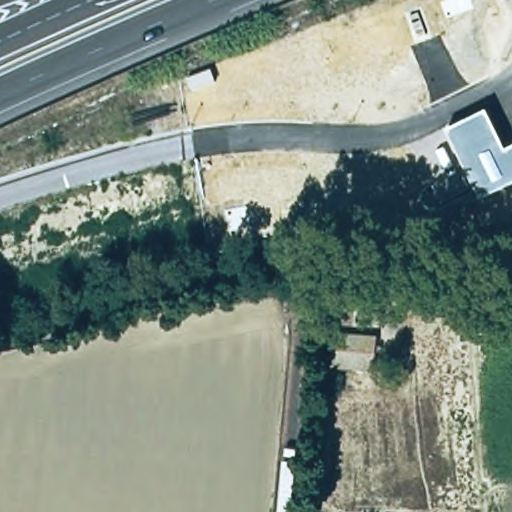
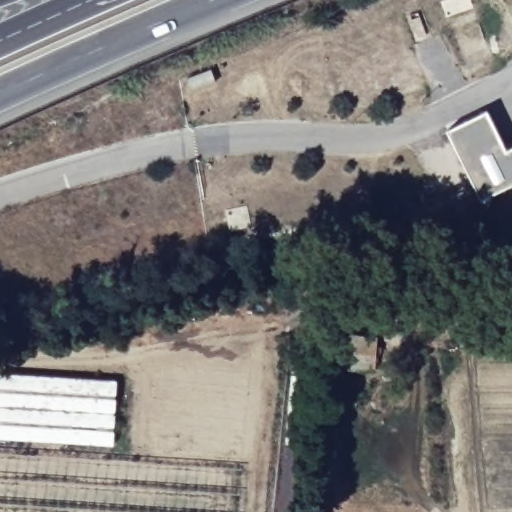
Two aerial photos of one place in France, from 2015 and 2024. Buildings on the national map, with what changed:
demolished [(360,55),(385,60),(387,51),(430,59),(427,83),(408,80),(404,98),(350,86),(360,55)]
unchanged [(487,112),(505,150),(512,147),(512,186),(478,202),(445,132),(487,112)]
unchanged [(370,338),(370,372),(329,369),(330,336),(370,338)]
new [(113,446),(0,439),(0,373),(115,381),(113,446)]

